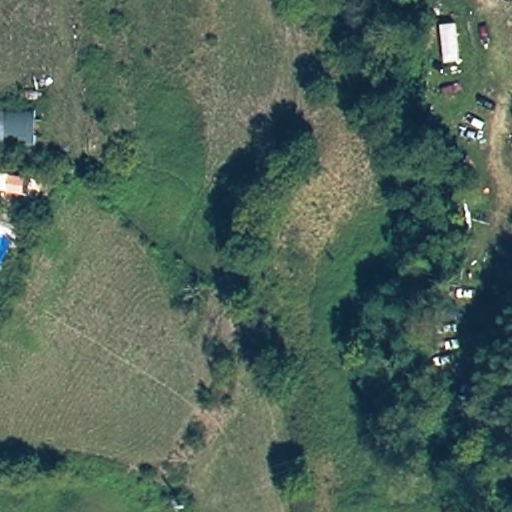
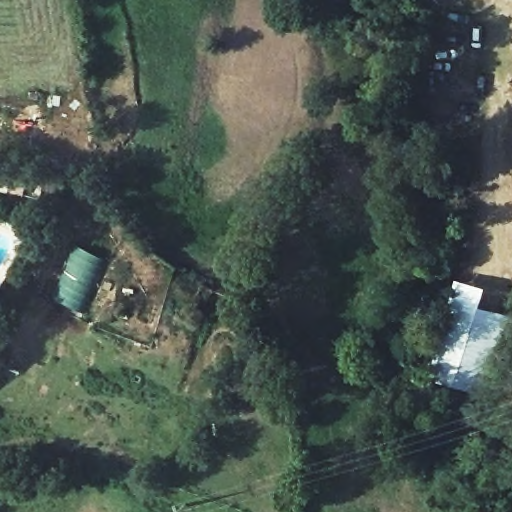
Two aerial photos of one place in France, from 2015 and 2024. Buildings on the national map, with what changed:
unchanged [(0,143),(0,109),(36,110),(35,145),(0,143)]
new [(84,312),(50,298),(71,245),(103,258),(104,258),(84,312)]
new [(512,300),(512,308),(482,397),(428,380),(458,283),(512,300)]

